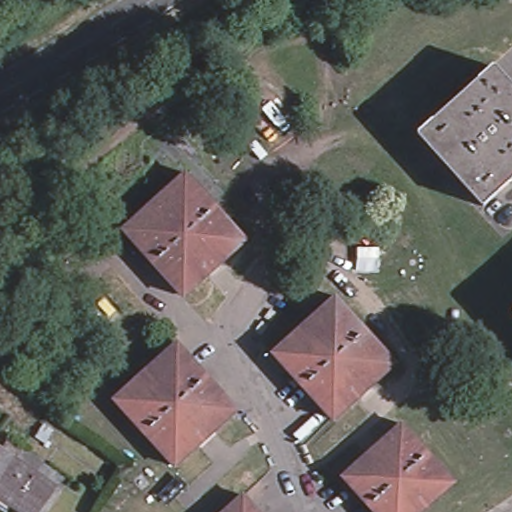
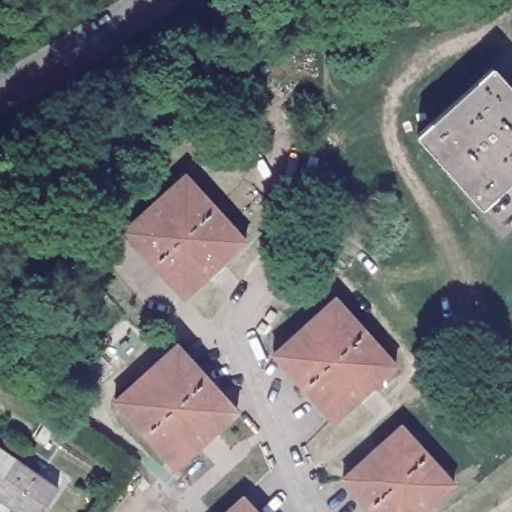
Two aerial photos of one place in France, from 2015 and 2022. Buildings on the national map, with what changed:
unchanged [(512,86),(512,179),(487,202),(422,131),(494,66),(512,86)]
unchanged [(124,231),(184,174),(244,239),(185,296),(124,231)]
unchanged [(334,300),(391,367),(329,421),(270,355),(334,300)]
unchanged [(173,344),(233,408),(169,465),(111,402),(173,344)]
unchanged [(453,482),(418,512),(375,512),(343,475),(402,423),(453,482)]
unchanged [(0,479),(0,443),(17,455),(0,479)]
unchanged [(22,512),(0,497),(0,479),(17,455),(58,483),(37,512),(22,512)]
unchanged [(256,512),(225,512),(243,497),(256,512)]

